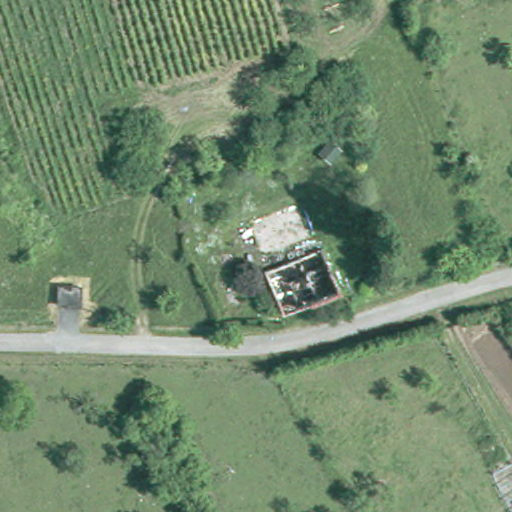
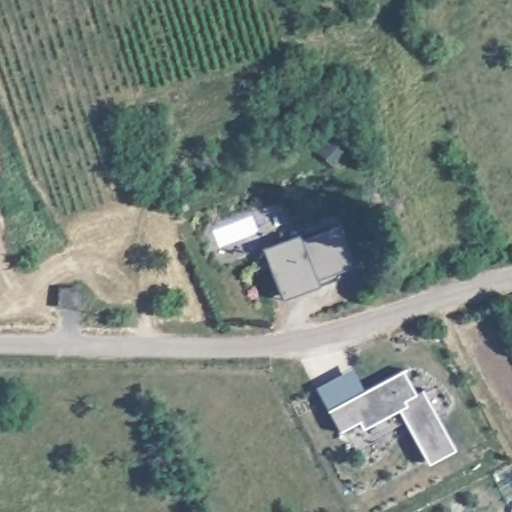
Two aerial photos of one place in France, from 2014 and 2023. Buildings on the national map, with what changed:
new [(262,249),(299,235),(300,240),(339,226),(354,267),(317,282),(320,286),(280,299),(262,249)]
demolished [(266,274),(322,244),(345,287),(290,316),(266,274)]
unchanged [(77,310),(55,310),(55,292),(77,292),(77,310)]
new [(454,449),(427,464),(398,409),(362,429),(357,421),(339,431),(315,385),(353,366),(365,389),(402,369),(414,392),(422,388),(454,449)]

